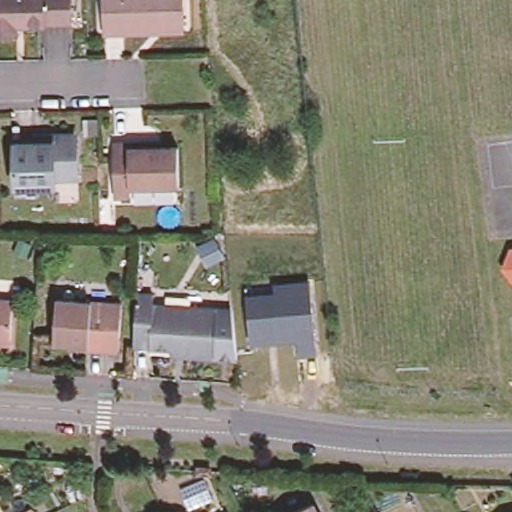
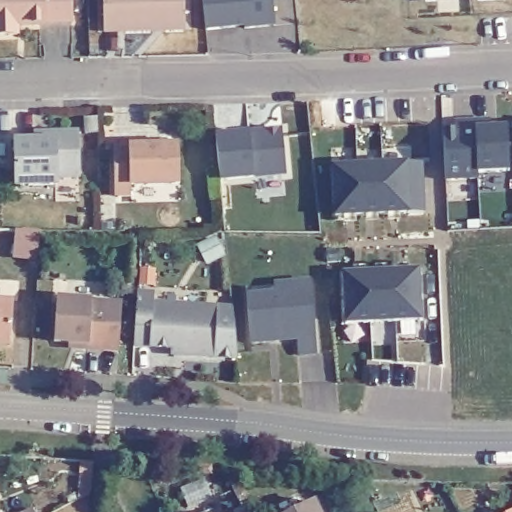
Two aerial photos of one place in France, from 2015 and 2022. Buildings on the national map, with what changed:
unchanged [(16,35),(0,36),(0,0),(70,0),(70,22),(43,23),(43,26),(18,27),(16,35)]
unchanged [(104,26),(103,0),(182,0),(183,22),(184,30),(104,33),(104,26)]
new [(244,30),(244,27),(206,31),(203,0),(274,0),(276,26),(244,30)]
new [(447,133),(461,131),(461,123),(490,123),(490,130),(507,131),(509,173),(472,174),(472,180),(448,180),(447,133)]
new [(288,175),(254,178),(220,182),(215,133),(249,129),(282,127),(288,175)]
unchanged [(78,140),(78,176),(58,178),(57,185),(16,186),(16,143),(36,142),(35,134),(58,134),(73,134),(78,140)]
unchanged [(126,184),(126,195),(111,195),(109,143),(139,142),(157,141),(158,146),(175,146),(176,184),(126,184)]
new [(426,212),(411,212),(411,214),(333,218),(330,166),(409,162),(424,162),(426,212)]
new [(347,325),(345,275),(419,273),(419,322),(347,325)]
new [(318,354),(299,357),(296,340),(251,345),(246,294),(274,290),(274,283),(310,278),(318,354)]
unchanged [(183,352),(144,349),(148,297),(166,299),(166,307),(229,312),(226,363),(199,360),(183,359),(183,352)]
unchanged [(12,338),(0,338),(0,299),(14,299),(12,338)]
unchanged [(71,342),(56,341),(58,299),(108,302),(105,350),(89,349),(71,347),(71,342)]
unchanged [(309,499),(315,512),(285,512),(309,499)]

